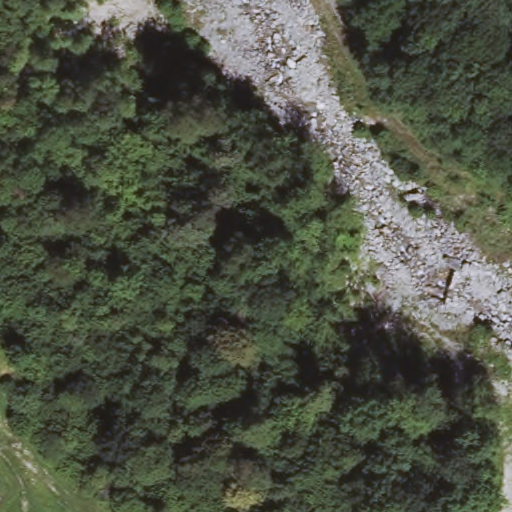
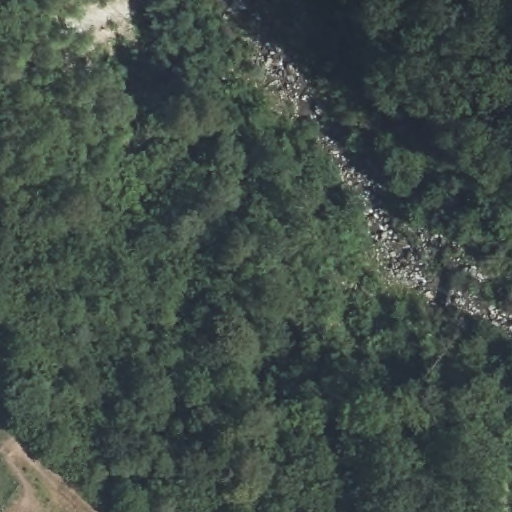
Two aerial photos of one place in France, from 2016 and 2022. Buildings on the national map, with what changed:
[]

